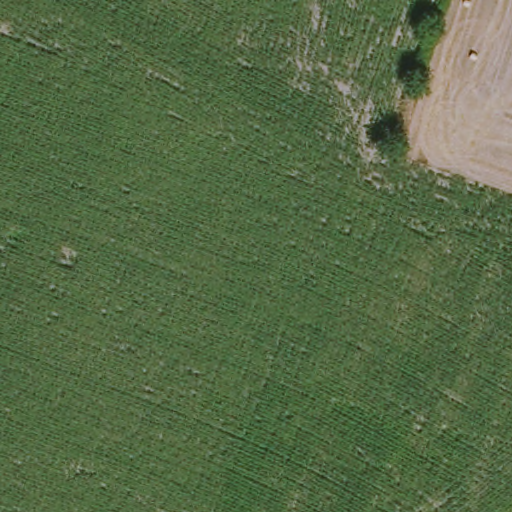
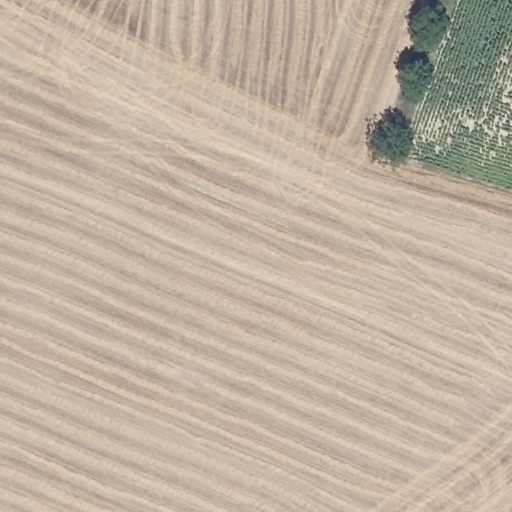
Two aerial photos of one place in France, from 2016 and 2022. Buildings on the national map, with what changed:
[]

